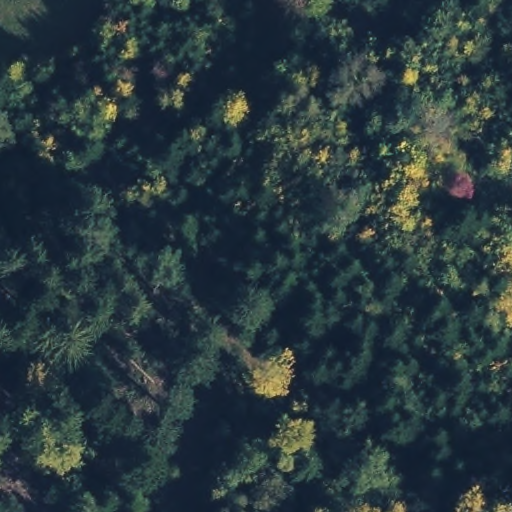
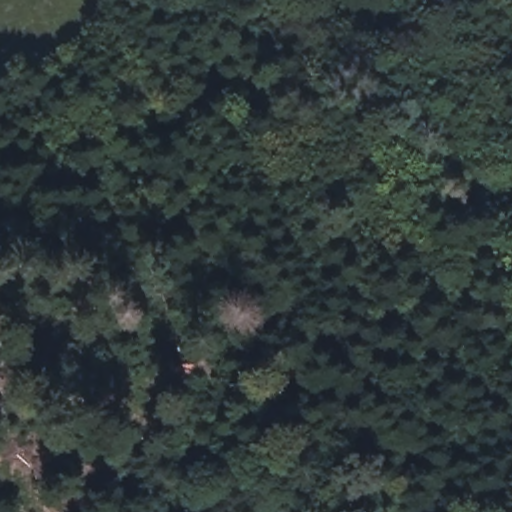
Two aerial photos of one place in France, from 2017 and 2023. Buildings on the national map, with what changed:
[]

